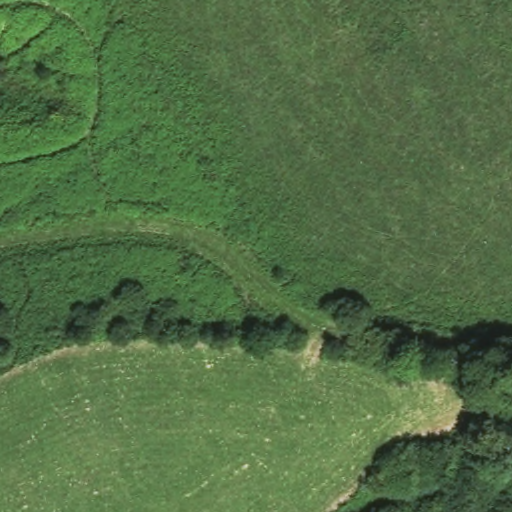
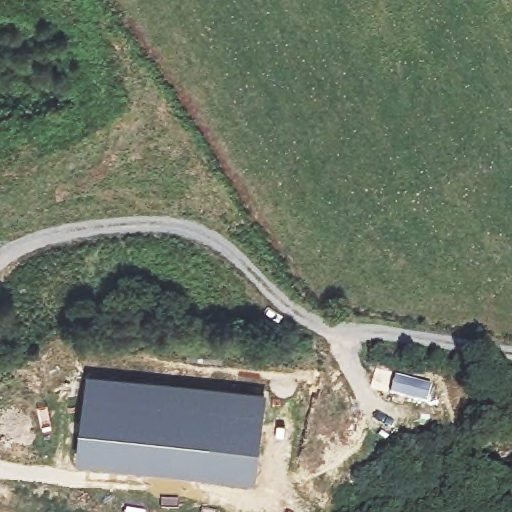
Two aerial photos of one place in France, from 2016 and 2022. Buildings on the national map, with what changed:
new [(92,377),(267,400),(255,484),(81,461),(92,377)]

